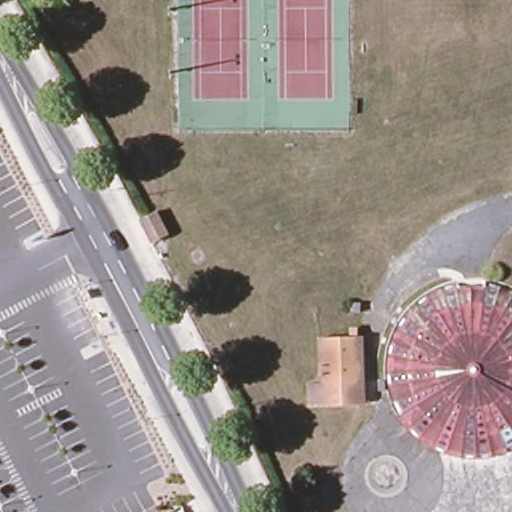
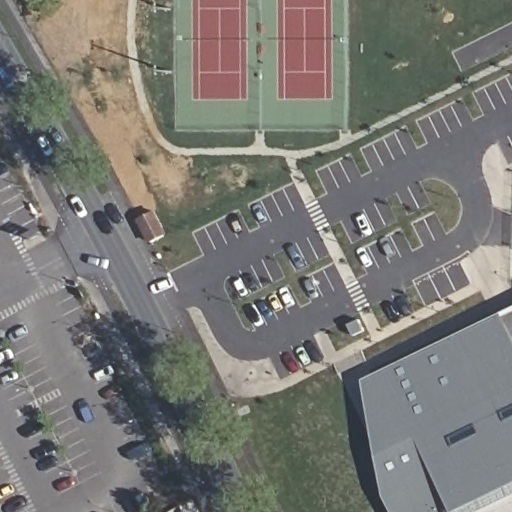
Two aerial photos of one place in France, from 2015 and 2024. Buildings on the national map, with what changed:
unchanged [(128,195),(142,188),(151,204),(149,207),(152,212),(140,219),(128,195)]
demolished [(510,447),(509,448),(507,449),(506,449),(505,449),(503,450),(501,451),(500,451),(498,451),(497,452),(495,452),(493,452),(492,453),(490,453),(489,453),(487,454),(485,454),(484,454),(482,454),(481,454),(480,454),(477,454),(476,454),(475,454),(473,454),(471,454),(470,454),(468,454),(466,454),(465,454),(463,454),(461,453),(460,453),(458,453),(457,452),(455,452),(454,452),(452,451),(450,451),(449,450),(447,450),(446,449),(445,449),(443,448),(441,448),(440,447),(438,447),(437,446),(435,445),(434,444),(432,444),(431,443),(430,442),(428,441),(427,441),(425,439),(423,438),(422,437),(420,436),(419,435),(418,434),(416,433),(415,432),(415,431),(413,430),(412,429),(410,428),(410,427),(408,425),(407,424),(406,423),(405,422),(404,421),(403,419),(402,418),(401,417),(400,416),(400,414),(398,413),(397,412),(397,410),(396,409),(395,407),(395,406),(393,404),(393,403),(392,402),(391,400),(391,399),(390,397),(390,396),(389,394),(388,393),(388,391),(387,389),(387,388),(386,387),(386,385),(385,384),(385,382),(385,380),(385,379),(385,377),(385,376),(384,374),(384,372),(383,371),(383,369),(383,368),(383,366),(383,364),(383,363),(383,361),(383,359),(383,358),(383,356),(383,354),(383,353),(384,352),(384,349),(385,348),(385,347),(385,345),(385,344),(385,342),(386,340),(386,339),(386,337),(387,335),(387,334),(388,333),(388,331),(389,329),(390,328),(390,327),(391,325),(391,324),(392,322),(393,320),(393,319),(395,318),(395,317),(396,315),(397,314),(397,313),(398,311),(400,309),(401,307),(402,305),(403,304),(405,303),(405,302),(406,301),(407,299),(408,299),(410,297),(411,296),(412,295),(413,294),(415,293),(415,292),(417,290),(418,289),(420,289),(420,288),(422,287),(423,286),(425,285),(426,284),(427,283),(428,283),(430,282),(431,281),(433,280),(435,279),(436,279),(437,278),(438,278),(440,277),(441,276),(443,275),(445,275),(446,274),(448,274),(450,274),(451,273),(452,273),(454,273),(455,272),(457,272),(458,271),(460,271),(462,270),(463,270),(465,270),(466,270),(468,270),(470,270),(471,270),(473,270),(475,269),(476,270),(478,270),(480,270),(481,270),(482,270),(485,270),(486,270),(487,270),(489,271),(490,271),(492,272),(494,272),(495,272),(497,273),(498,273),(500,273),(501,274),(503,274),(505,274),(506,275),(508,275),(510,276),(511,277),(512,277),(512,447),(510,447)]
demolished [(360,294),(360,304),(350,304),(350,294),(360,294)]
new [(512,309),(512,487),(460,512),(394,512),(385,496),(365,381),(512,309)]
demolished [(21,366),(7,374),(14,385),(0,393),(0,327),(9,343),(21,366)]
demolished [(358,410),(307,412),(306,389),(317,389),(315,341),(355,339),(356,349),(345,349),(345,360),(356,360),(358,410)]

